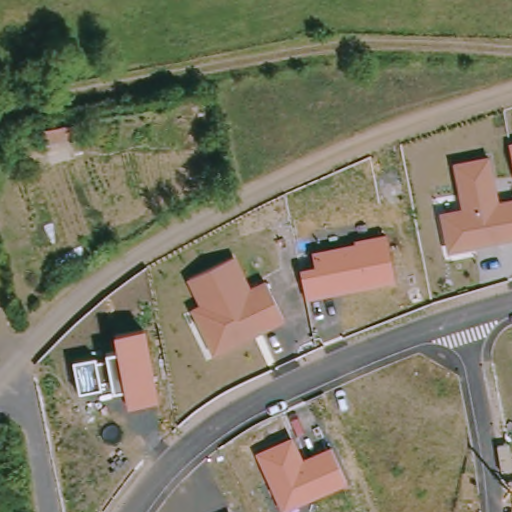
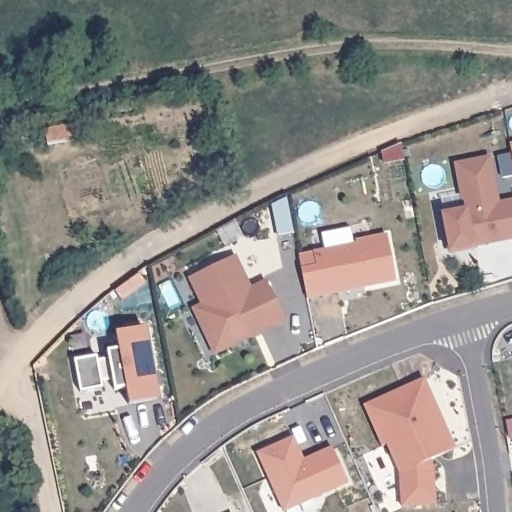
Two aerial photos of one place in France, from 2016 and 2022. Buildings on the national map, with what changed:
unchanged [(70,123),(71,135),(45,139),(43,127),(70,123)]
unchanged [(512,153),(510,143),(512,142),(512,153)]
unchanged [(499,200),(512,197),(512,238),(450,250),(442,211),(463,206),(454,164),(490,156),(499,200)]
unchanged [(316,264),(313,253),(355,242),(354,239),(387,233),(395,281),(306,299),(299,268),(316,264)]
unchanged [(251,286),(265,279),(286,319),(215,355),(191,308),(202,304),(187,278),(234,255),(251,286)]
unchanged [(96,355),(97,360),(108,357),(107,351),(117,349),(114,333),(146,329),(160,398),(128,406),(124,388),(112,390),(109,379),(102,380),(103,389),(79,394),(73,360),(96,355)]
new [(401,507),(398,473),(385,445),(380,447),(363,405),(425,378),(455,446),(430,458),(433,469),(435,506),(401,507)]
unchanged [(294,437),(305,461),(332,447),(347,483),(282,510),(257,453),(294,437)]

